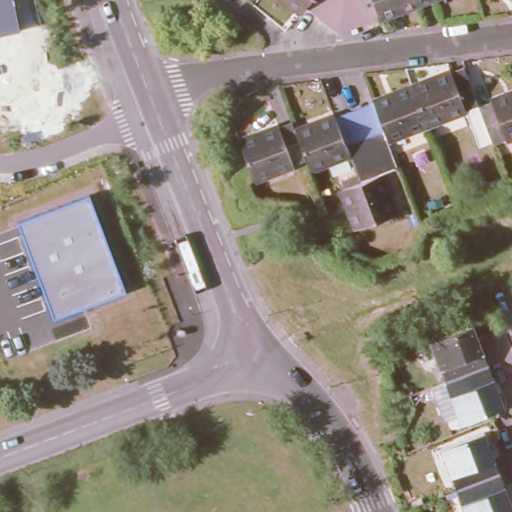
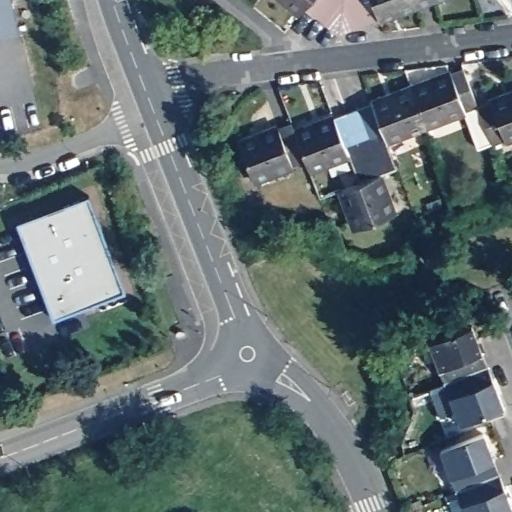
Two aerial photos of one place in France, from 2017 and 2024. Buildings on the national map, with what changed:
unchanged [(0,34),(0,0),(12,0),(18,30),(0,34)]
unchanged [(306,9),(300,15),(283,0),(342,0),(337,35),(306,9)]
unchanged [(414,0),(416,5),(337,35),(342,0),(414,0)]
unchanged [(414,0),(429,0),(416,5),(414,0)]
unchanged [(412,84),(450,70),(463,65),(477,102),(426,121),(412,84)]
unchanged [(426,121),(387,136),(397,165),(383,170),(378,171),(393,212),(356,226),(340,185),(358,179),(347,151),(308,165),(305,157),(295,129),(334,114),(347,109),(360,104),(372,99),(412,84),(426,121)]
unchanged [(477,102),(490,97),(512,88),(512,130),(490,138),(477,102)]
unchanged [(248,166),(238,139),(291,119),(295,129),(305,157),(252,176),(248,166)]
unchanged [(128,293),(55,321),(17,224),(91,195),(128,293)]
unchanged [(432,342),(475,327),(490,367),(447,382),(432,342)]
unchanged [(463,423),(447,382),(490,367),(506,407),(463,423)]
unchanged [(432,450),(476,433),(492,473),(447,490),(432,450)]
unchanged [(506,512),(456,512),(447,490),(492,473),(506,512)]

